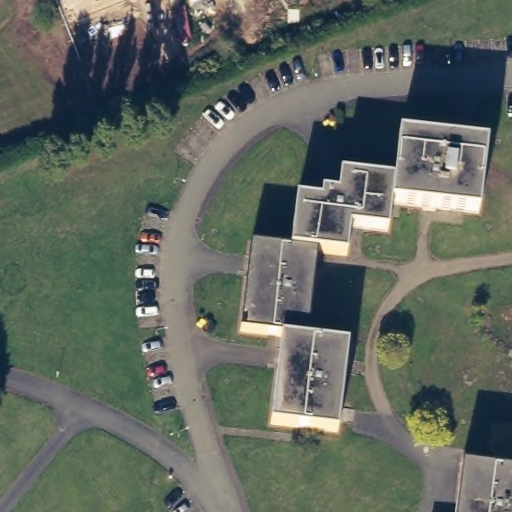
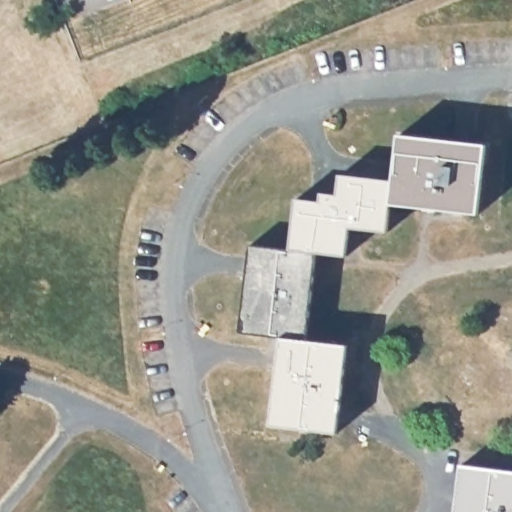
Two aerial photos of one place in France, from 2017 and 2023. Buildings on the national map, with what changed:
unchanged [(240,328),(250,240),(290,244),(297,194),(320,196),(322,188),(338,190),(340,170),(394,177),(399,130),(487,140),(479,210),(391,200),(387,228),(350,223),(347,252),(317,248),(307,336),(348,340),(337,428),(270,420),(280,332),(240,328)]
unchanged [(512,466),(512,512),(454,512),(461,460),(512,466)]

